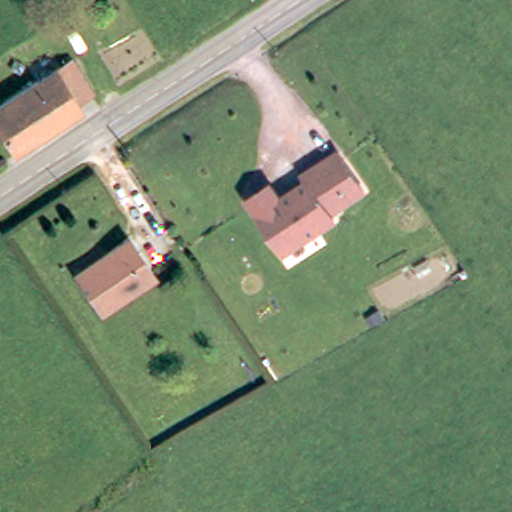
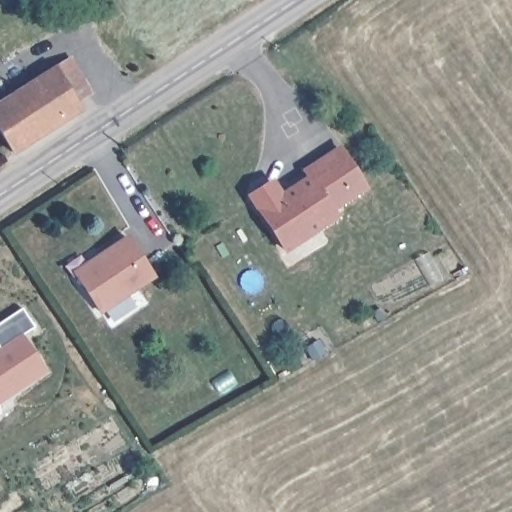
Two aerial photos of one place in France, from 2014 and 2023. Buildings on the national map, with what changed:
unchanged [(0,151),(0,101),(64,60),(90,99),(3,157),(0,151)]
unchanged [(288,251),(253,201),(253,193),(269,183),(276,187),(283,198),(311,178),(306,171),(341,149),(368,188),(333,210),(338,217),(288,251)]
unchanged [(106,310),(79,269),(126,237),(152,278),(106,310)]
new [(35,327),(24,334),(48,372),(0,404),(0,348),(1,347),(0,346),(0,323),(23,308),(35,327)]

